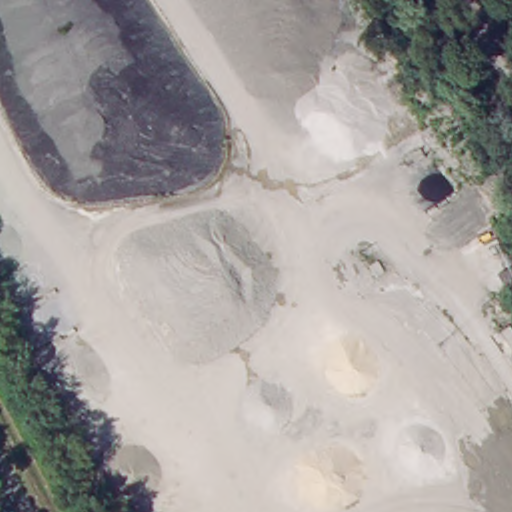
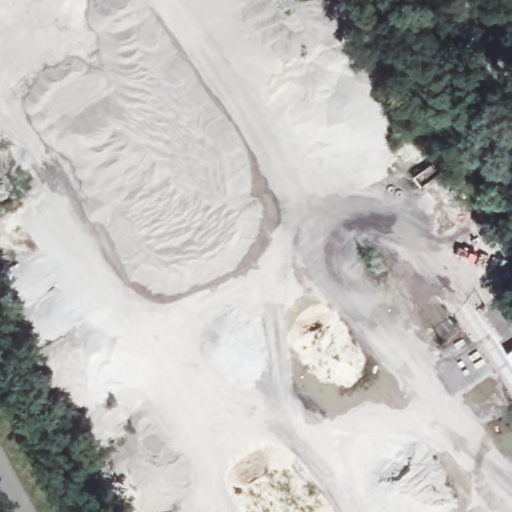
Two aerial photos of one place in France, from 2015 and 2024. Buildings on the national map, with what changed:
unchanged [(512,231),(512,235),(485,249),(468,216),(491,201),(512,231)]

